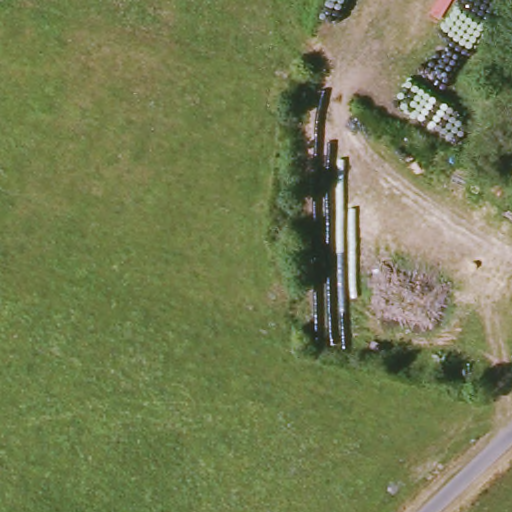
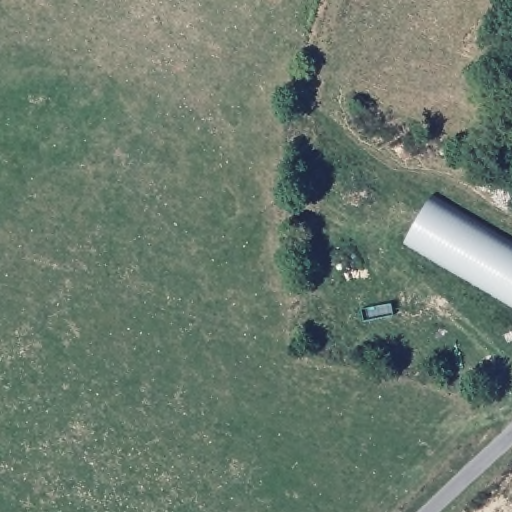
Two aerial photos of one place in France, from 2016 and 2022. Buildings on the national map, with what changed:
new [(405,247),(435,196),(512,243),(512,308),(405,247)]

